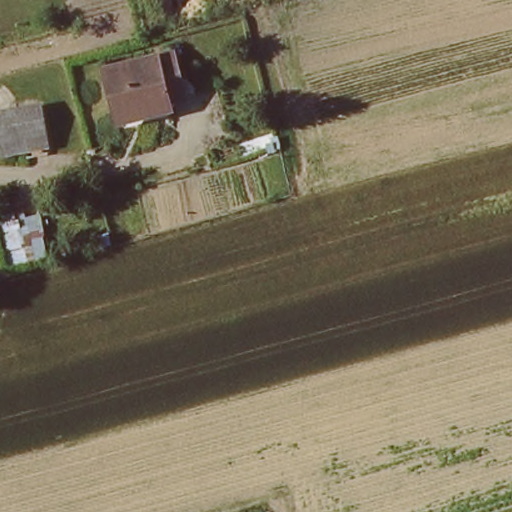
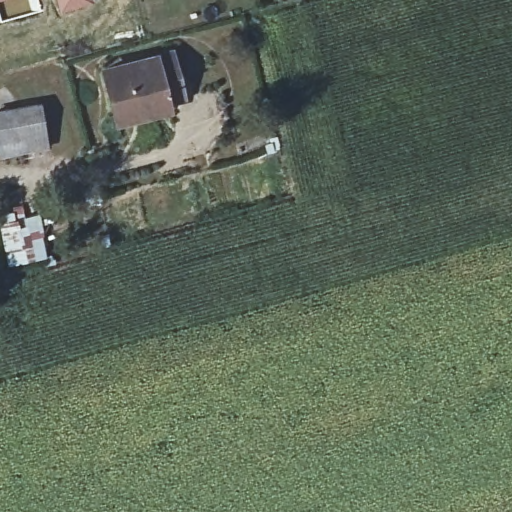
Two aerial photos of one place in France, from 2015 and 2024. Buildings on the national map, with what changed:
new [(43,12),(0,23),(0,0),(39,0),(43,12)]
new [(93,3),(60,14),(55,0),(91,0),(93,3)]
unchanged [(145,119),(115,125),(104,72),(177,56),(186,99),(171,101),(173,113),(145,119)]
unchanged [(48,150),(3,158),(0,144),(0,114),(40,106),(48,150)]
unchanged [(50,259),(35,263),(10,269),(0,225),(0,218),(12,215),(11,208),(23,205),(25,212),(30,240),(45,237),(50,259)]

